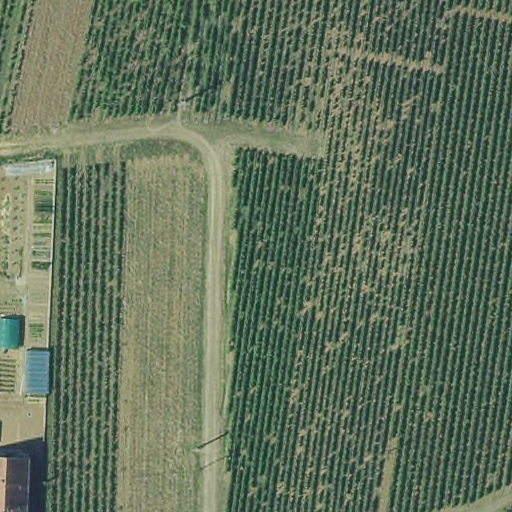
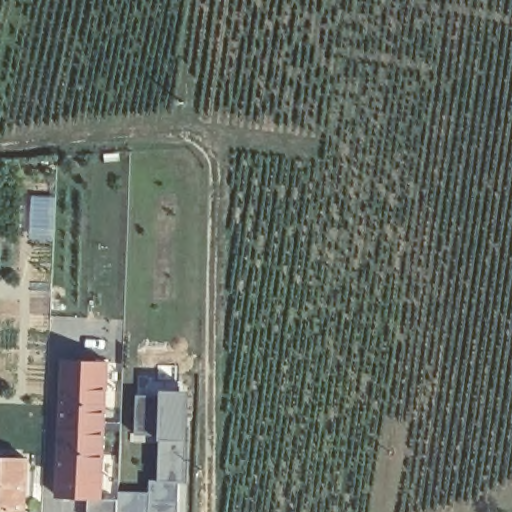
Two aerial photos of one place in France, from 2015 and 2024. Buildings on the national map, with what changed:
new [(55,195),(52,240),(28,240),(30,195),(55,195)]
new [(54,496),(61,360),(108,361),(102,498),(117,498),(117,492),(149,492),(149,481),(159,481),(160,439),(160,434),(134,433),(136,394),(161,394),(161,390),(188,391),(187,440),(185,482),(177,482),(177,512),(88,512),(88,497),(54,496)]
unchanged [(20,512),(0,512),(0,462),(22,462),(20,512)]

